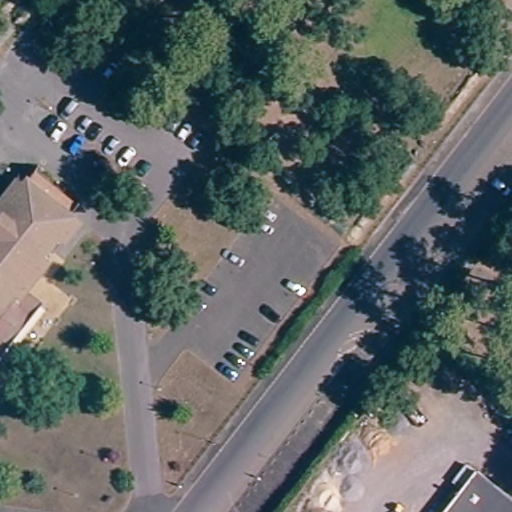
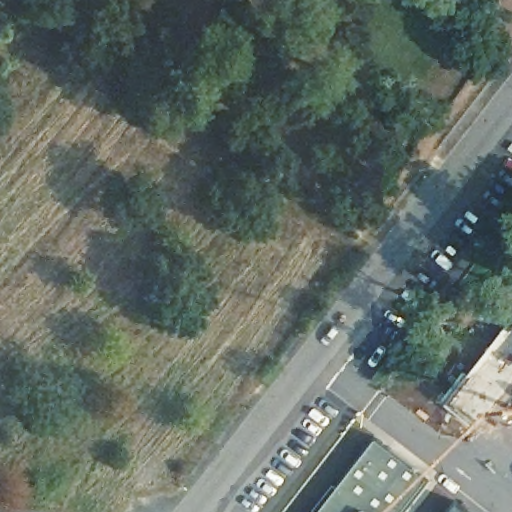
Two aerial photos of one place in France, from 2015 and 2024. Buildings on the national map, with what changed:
demolished [(32,164),(76,199),(13,279),(32,293),(0,335),(0,205),(32,164)]
new [(343,490),(381,441),(434,481),(410,512),(319,512),(339,486),(343,490)]
demolished [(512,496),(512,512),(443,512),(476,469),(512,496)]
new [(457,512),(463,505),(472,512),(457,512)]

